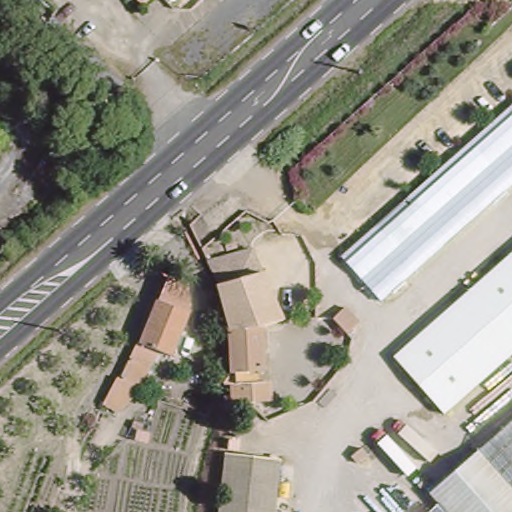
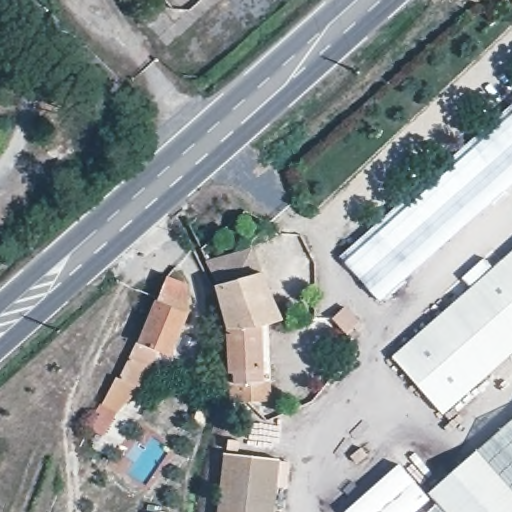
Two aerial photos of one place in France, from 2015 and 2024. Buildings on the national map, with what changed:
unchanged [(33,36),(20,25),(30,12),(44,24),(33,36)]
unchanged [(108,103),(38,40),(55,20),(125,84),(108,103)]
unchanged [(512,187),(384,299),(344,254),(512,107),(512,187)]
unchanged [(216,282),(206,259),(248,244),(281,316),(258,323),(226,325),(226,320),(216,282)]
unchanged [(394,357),(512,253),(512,355),(444,415),(394,357)]
unchanged [(119,390),(136,352),(141,354),(168,287),(188,295),(191,323),(173,367),(153,359),(136,398),(119,390)]
unchanged [(361,326),(348,336),(335,320),(348,310),(361,326)]
unchanged [(233,380),(232,369),(228,369),(226,325),(258,323),(261,378),(243,380),(243,388),(230,390),(228,381),(233,380)]
unchanged [(220,391),(230,390),(231,400),(221,400),(220,391)]
unchanged [(427,494),(512,420),(512,512),(442,512),(437,505),(427,494)]
unchanged [(213,512),(225,450),(279,459),(269,512),(213,512)]
new [(427,494),(430,498),(414,512),(345,512),(345,511),(399,464),(427,494)]
unchanged [(442,512),(429,512),(437,505),(442,512)]

